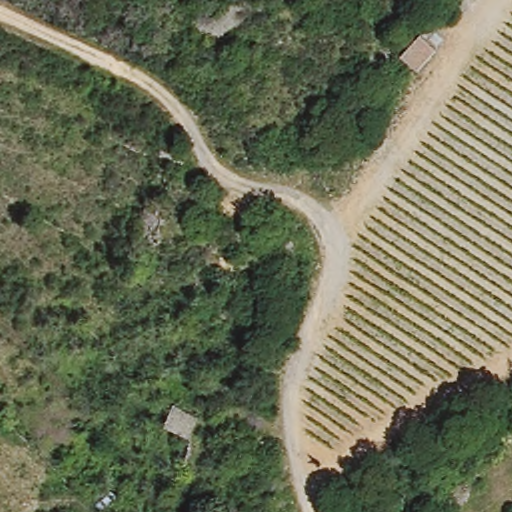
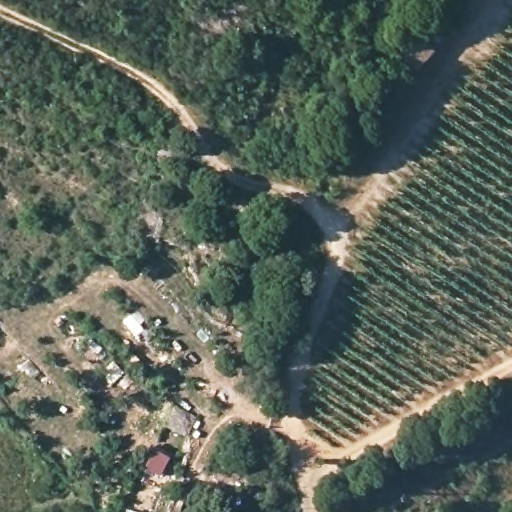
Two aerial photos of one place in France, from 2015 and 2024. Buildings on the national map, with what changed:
unchanged [(420,35),(434,48),(415,66),(404,51),(420,35)]
unchanged [(192,440),(165,426),(174,404),(197,416),(192,440)]

